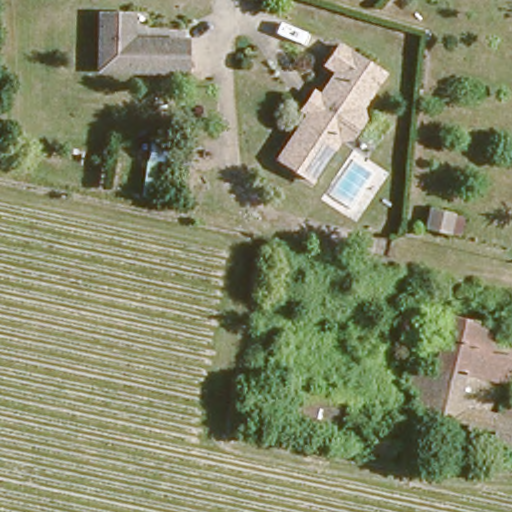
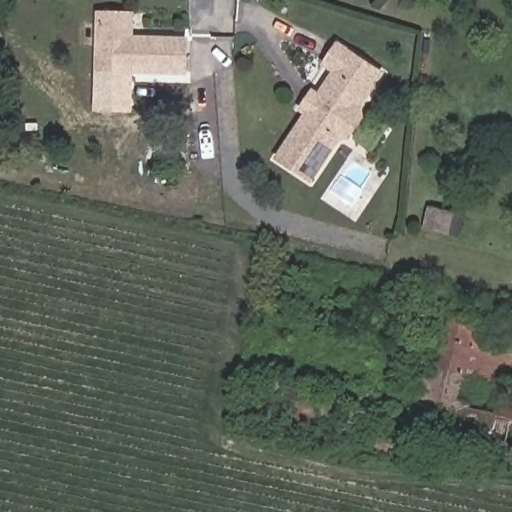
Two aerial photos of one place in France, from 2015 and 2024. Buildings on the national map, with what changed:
unchanged [(94,80),(95,16),(133,16),(131,42),(185,44),(184,79),(94,80)]
unchanged [(308,104),(303,99),(315,88),(320,91),(338,70),(328,60),(345,41),(385,73),(357,106),(362,111),(341,136),(337,133),(311,165),(305,172),(288,159),(275,148),(272,145),(276,141),(308,104)]
new [(94,80),(134,80),(132,113),(94,111),(94,80)]
unchanged [(446,196),(449,179),(475,183),(472,201),(446,196)]
unchanged [(431,366),(418,363),(422,352),(425,341),(446,345),(455,311),(493,320),(505,323),(499,344),(512,347),(512,382),(509,394),(497,391),(496,398),(512,402),(512,445),(418,421),(420,409),(421,409),(431,366)]
unchanged [(347,406),(345,421),(343,435),(283,422),(291,381),(332,389),(330,403),(347,406)]
unchanged [(360,423),(361,417),(406,426),(400,446),(343,435),(345,421),(360,423)]

